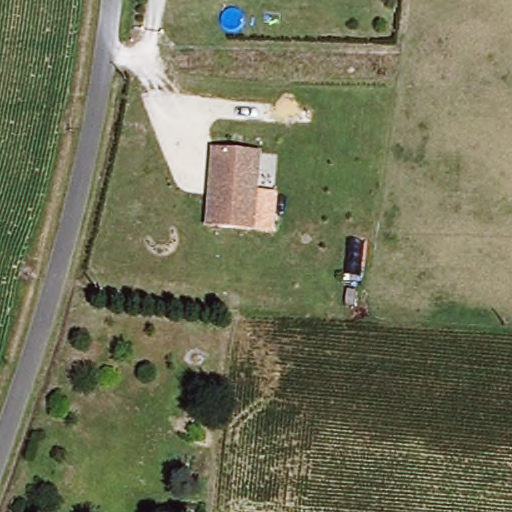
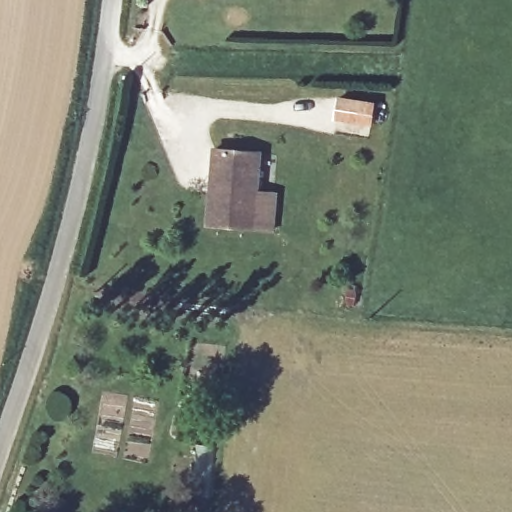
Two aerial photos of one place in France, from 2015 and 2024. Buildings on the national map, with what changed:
new [(337,98),(372,102),(367,134),(333,130),(337,98)]
unchanged [(257,155),(251,229),(207,226),(213,152),(257,155)]

